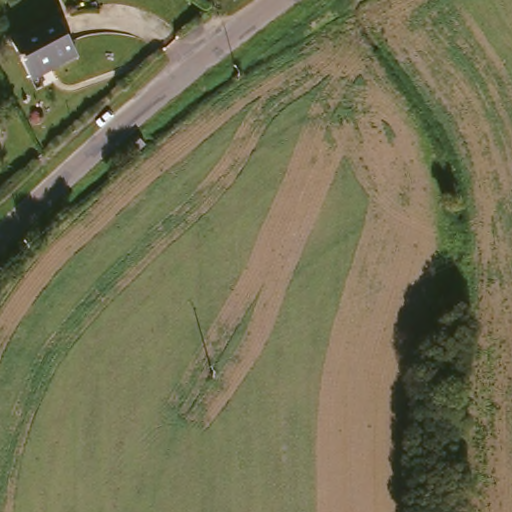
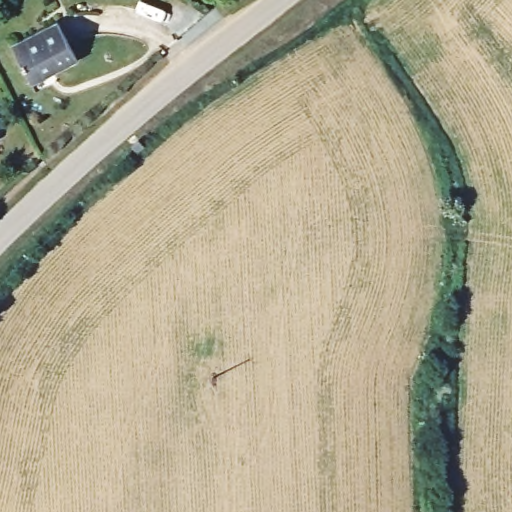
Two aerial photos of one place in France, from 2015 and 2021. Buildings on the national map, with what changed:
unchanged [(51,20),(75,56),(31,85),(6,48),(51,20)]

